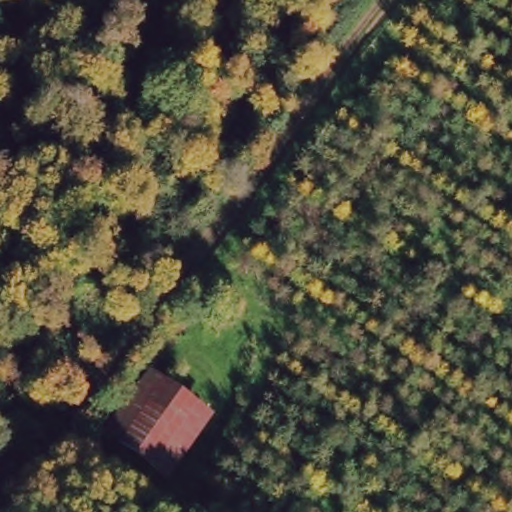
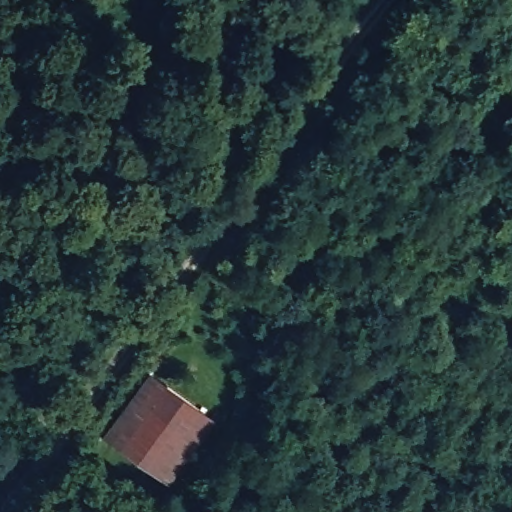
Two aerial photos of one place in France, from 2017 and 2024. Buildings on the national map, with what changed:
unchanged [(161,486),(100,439),(146,370),(209,418),(161,486)]

